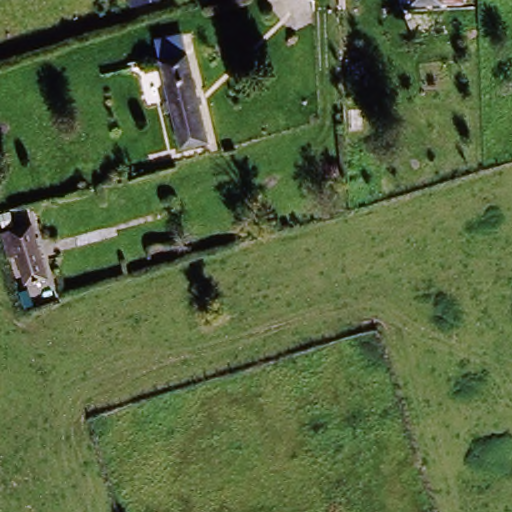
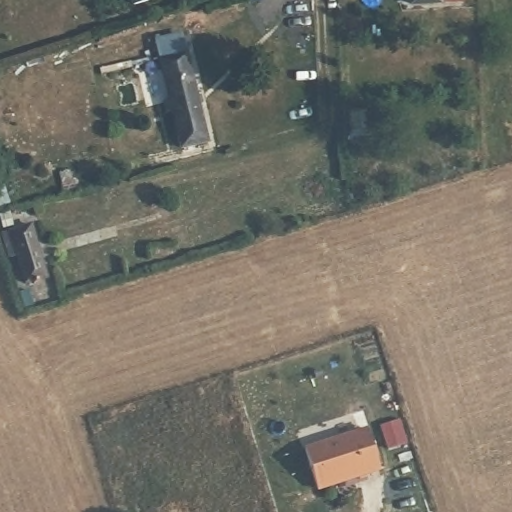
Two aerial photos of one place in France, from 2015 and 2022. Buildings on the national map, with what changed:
unchanged [(133,15),(129,0),(173,0),(133,15)]
unchanged [(461,10),(413,11),(413,0),(461,0),(461,10)]
unchanged [(184,45),(210,152),(187,157),(160,51),(184,45)]
unchanged [(26,287),(17,261),(8,264),(2,242),(30,232),(36,250),(46,281),(26,287)]
new [(305,452),(369,433),(381,473),(318,492),(305,452)]

